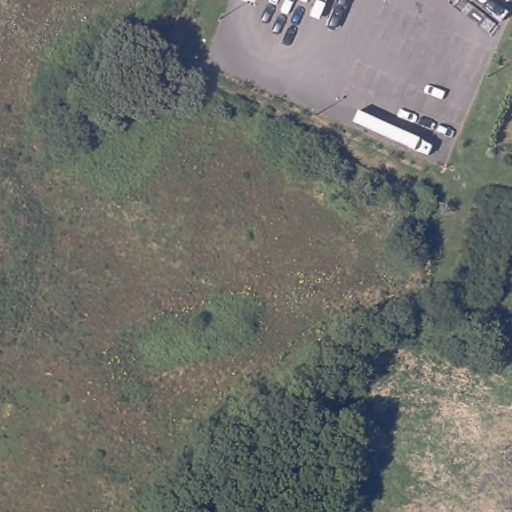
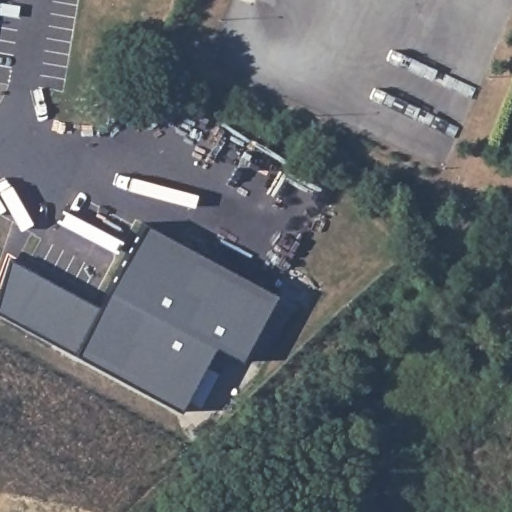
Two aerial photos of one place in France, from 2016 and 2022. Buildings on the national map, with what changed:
new [(212,347),(176,410),(73,355),(0,312),(0,287),(9,258),(98,307),(144,225),(274,293),(238,361),(212,347)]

